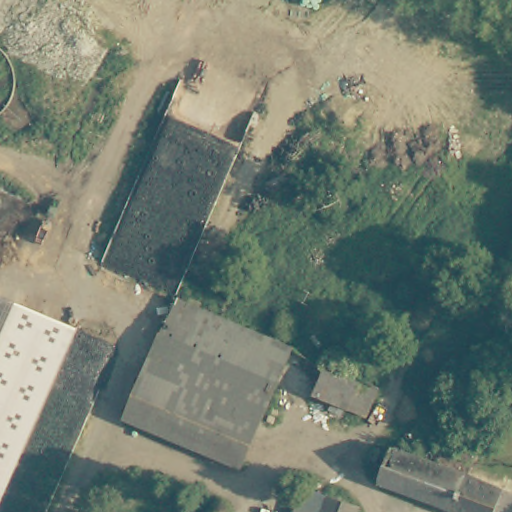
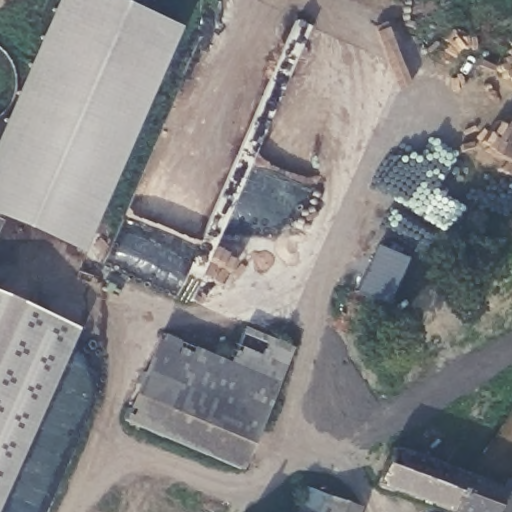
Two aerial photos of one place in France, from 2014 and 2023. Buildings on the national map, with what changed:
new [(0,129),(55,0),(113,0),(179,29),(80,252),(0,218),(0,129)]
unchanged [(76,328),(0,504),(0,296),(15,302),(76,328)]
unchanged [(292,349),(240,470),(122,418),(177,298),(292,349)]
unchanged [(374,385),(363,410),(310,386),(321,361),(374,385)]
unchanged [(444,501),(377,475),(392,441),(459,466),(444,501)]
unchanged [(501,512),(472,512),(444,501),(459,466),(495,481),(511,487),(501,512)]
unchanged [(307,490),(313,491),(327,496),(362,509),(361,512),(298,512),(307,490)]

